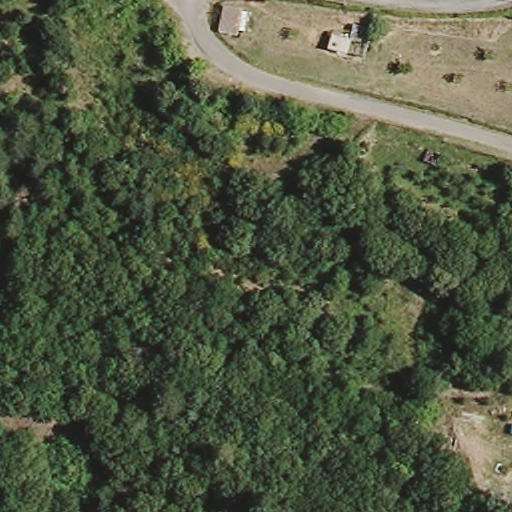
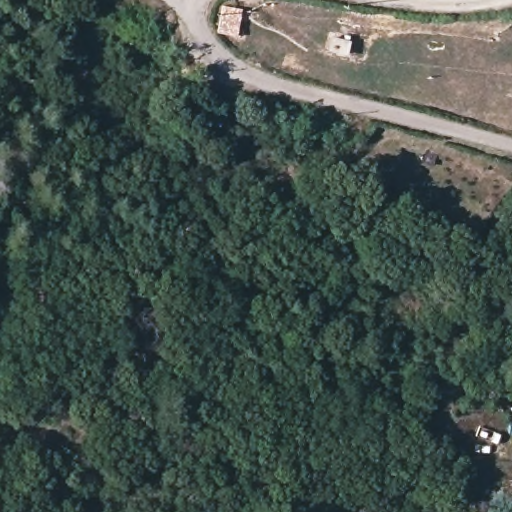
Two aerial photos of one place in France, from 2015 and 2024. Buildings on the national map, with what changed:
unchanged [(223,31),(226,7),(243,10),(238,34),(223,31)]

